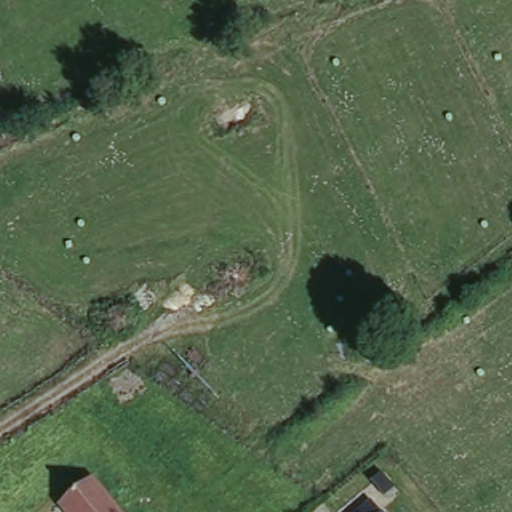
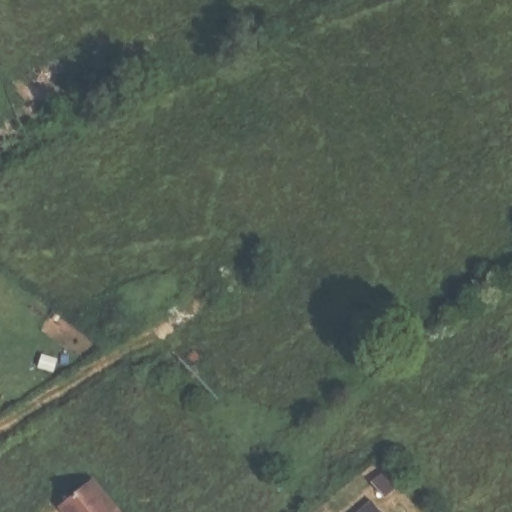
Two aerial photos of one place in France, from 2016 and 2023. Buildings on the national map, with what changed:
unchanged [(361,333),(375,351),(355,367),(342,347),(361,333)]
unchanged [(125,512),(68,512),(61,502),(96,475),(125,512)]
unchanged [(388,512),(354,512),(373,497),(388,512)]

